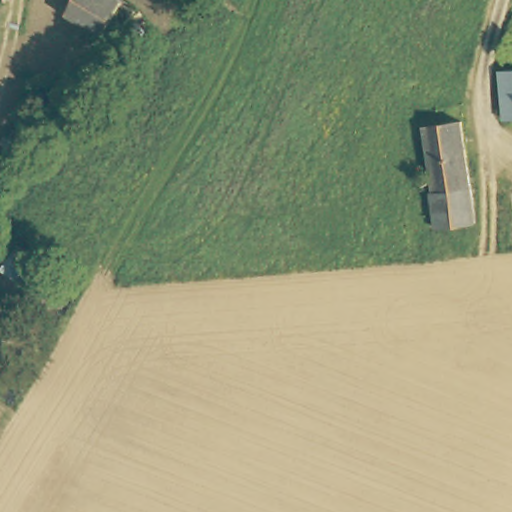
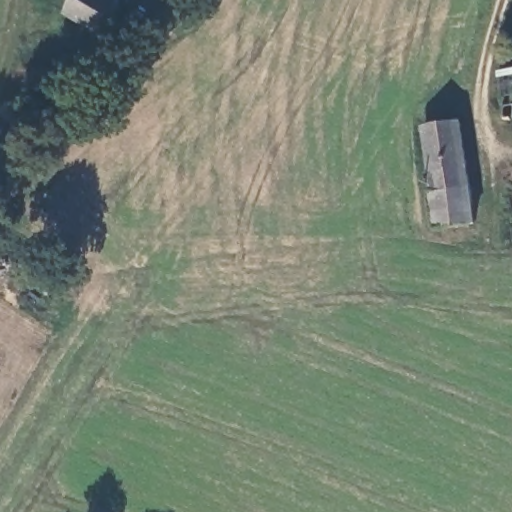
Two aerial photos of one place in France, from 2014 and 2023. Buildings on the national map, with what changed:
unchanged [(82,0),(131,0),(130,3),(139,9),(123,33),(79,4),(82,0)]
unchanged [(512,108),(509,76),(512,76),(512,108)]
unchanged [(78,89),(92,99),(79,116),(66,105),(78,89)]
unchanged [(441,198),(444,198),(436,128),(472,124),(484,225),(444,229),(441,198)]
unchanged [(22,289),(0,271),(0,249),(7,241),(36,262),(22,289)]

